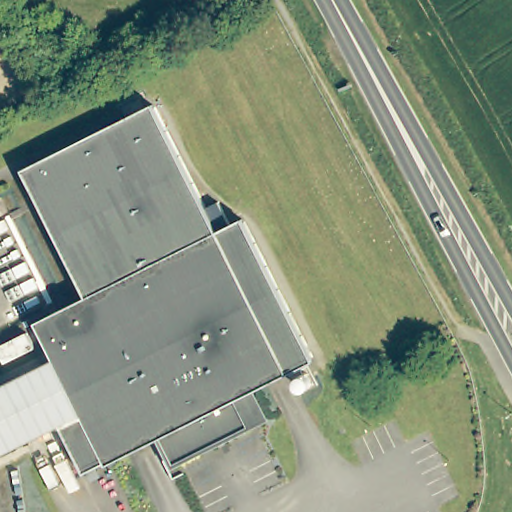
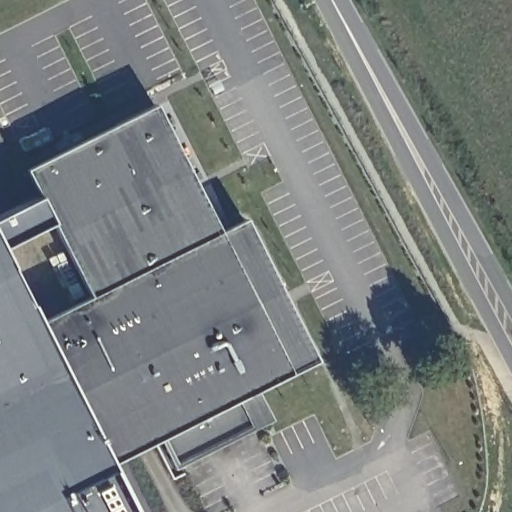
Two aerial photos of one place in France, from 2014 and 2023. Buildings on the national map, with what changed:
unchanged [(152,103),(215,230),(241,217),(312,359),(235,398),(249,426),(170,466),(155,436),(84,471),(60,426),(82,415),(35,321),(86,295),(22,169),(152,103)]
new [(35,195),(48,220),(0,245),(0,213),(35,195)]
new [(35,321),(82,415),(60,426),(84,471),(106,460),(132,512),(0,512),(0,251),(35,321)]

